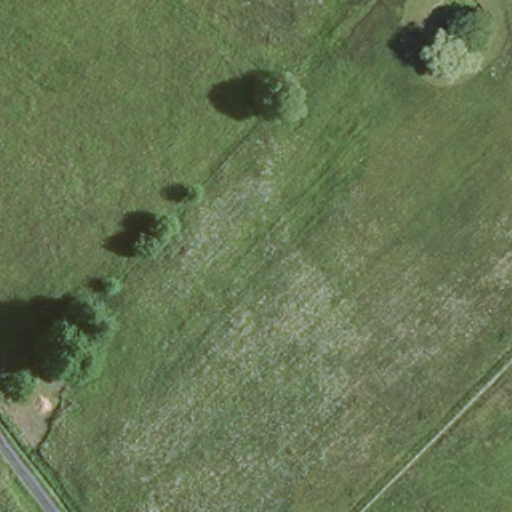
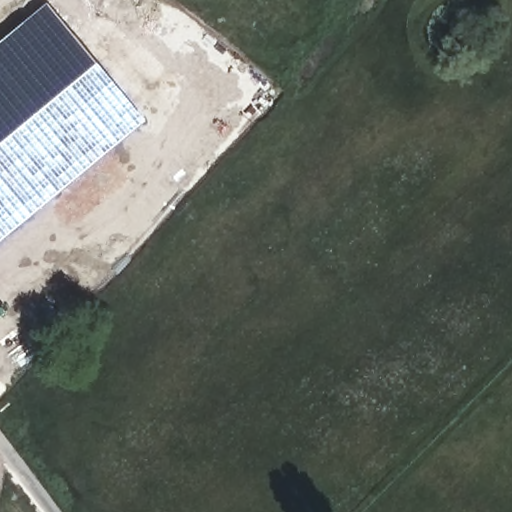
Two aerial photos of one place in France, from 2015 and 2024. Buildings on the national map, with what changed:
new [(145,119),(0,240),(0,40),(48,2),(145,119)]

